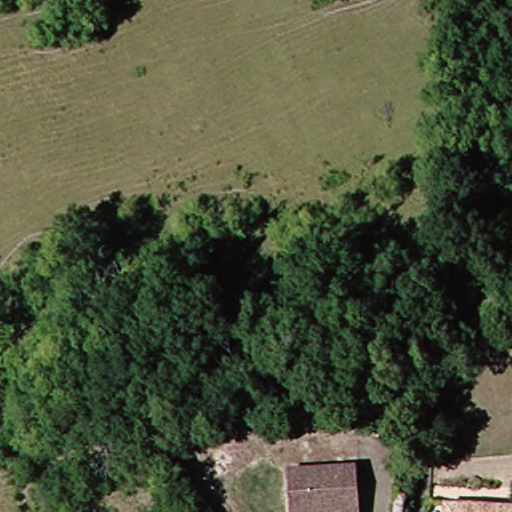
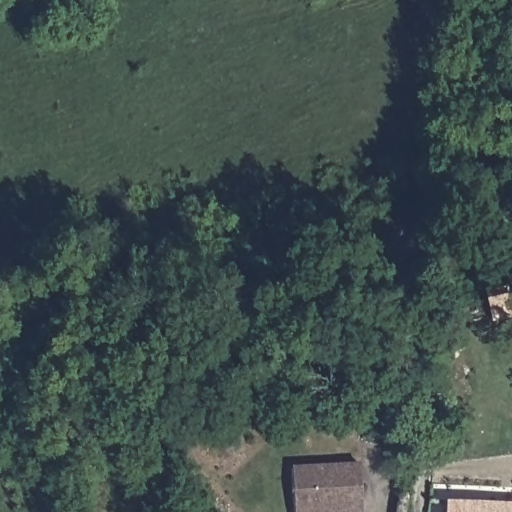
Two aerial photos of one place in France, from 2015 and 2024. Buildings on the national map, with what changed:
unchanged [(285,473),(357,472),(359,512),(286,512),(285,473)]
unchanged [(450,505),(512,511),(512,512),(449,512),(450,505)]

